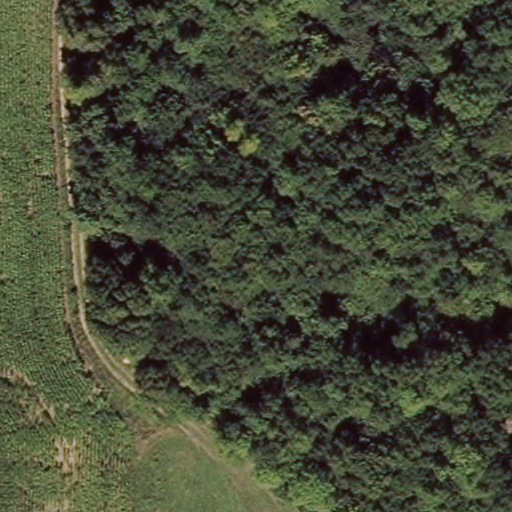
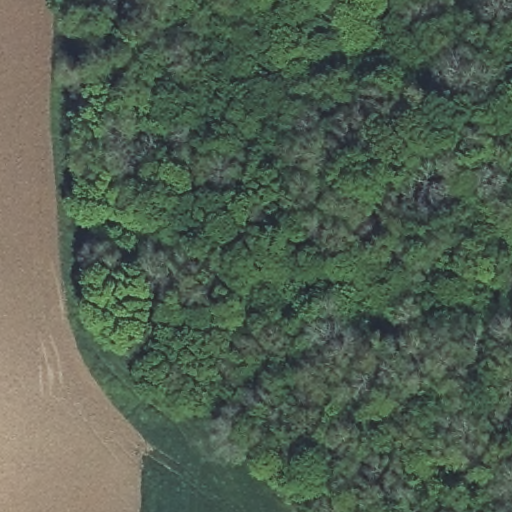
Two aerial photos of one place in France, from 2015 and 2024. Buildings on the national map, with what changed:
[]

